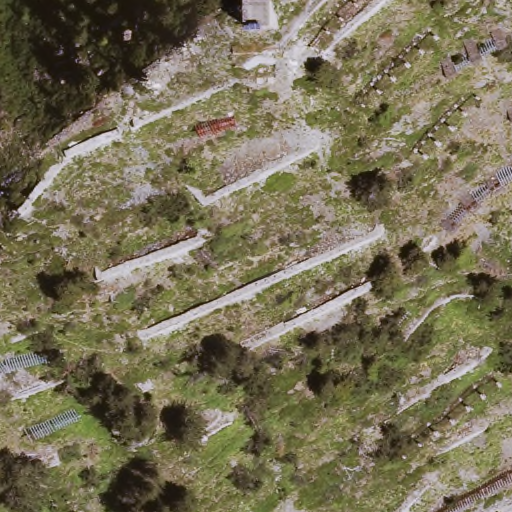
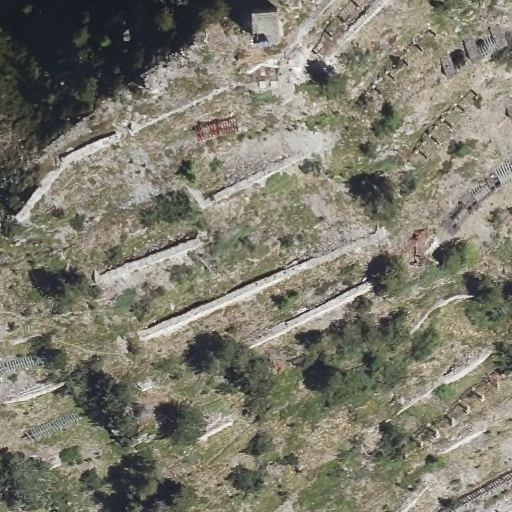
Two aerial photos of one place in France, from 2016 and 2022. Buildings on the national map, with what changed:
unchanged [(262,2),(272,3),(272,24),(250,24),(250,2),(262,2)]

